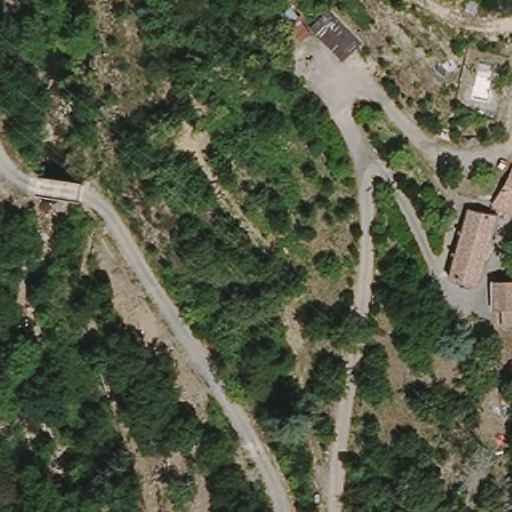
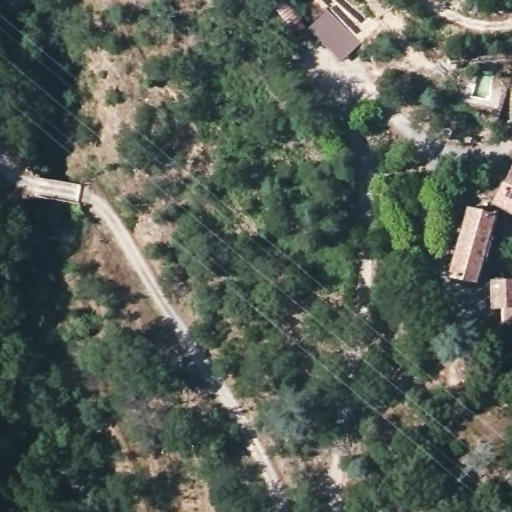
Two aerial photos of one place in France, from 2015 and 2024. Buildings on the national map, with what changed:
new [(358,41),(340,60),(309,25),(325,8),(358,41)]
unchanged [(502,171),(512,177),(512,219),(482,206),(502,171)]
unchanged [(480,290),(452,282),(475,213),(501,221),(480,290)]
unchanged [(512,285),(512,309),(492,310),(493,285),(512,285)]

